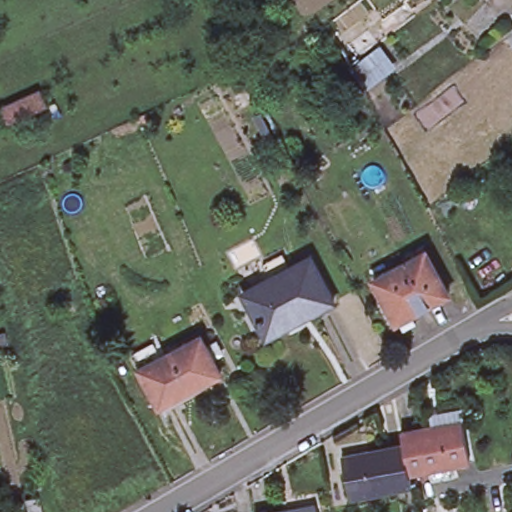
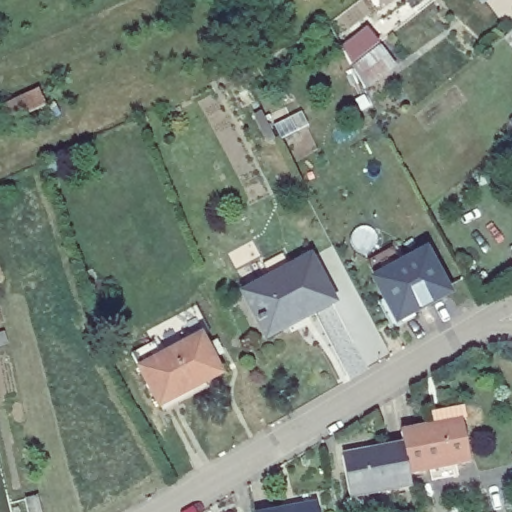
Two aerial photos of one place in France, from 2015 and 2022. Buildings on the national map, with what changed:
unchanged [(49,110),(7,127),(1,112),(43,95),(49,110)]
unchanged [(508,140),(512,137),(512,145),(508,140)]
unchanged [(449,299),(398,326),(376,282),(427,255),(449,299)]
unchanged [(332,304),(263,339),(240,296),(269,281),(261,267),(281,257),(289,271),(310,260),(332,304)]
unchanged [(160,408),(140,372),(202,340),(208,350),(218,345),(223,355),(213,360),(221,375),(160,408)]
unchanged [(402,442),(400,432),(463,421),(470,460),(408,472),(402,442)]
unchanged [(348,494),(341,453),(402,442),(408,472),(410,483),(348,494)]
unchanged [(43,512),(28,512),(25,501),(40,497),(43,512)]
unchanged [(316,502),(318,512),(261,512),(316,502)]

